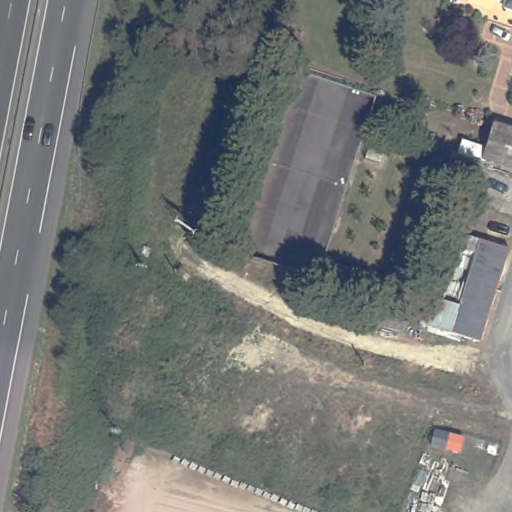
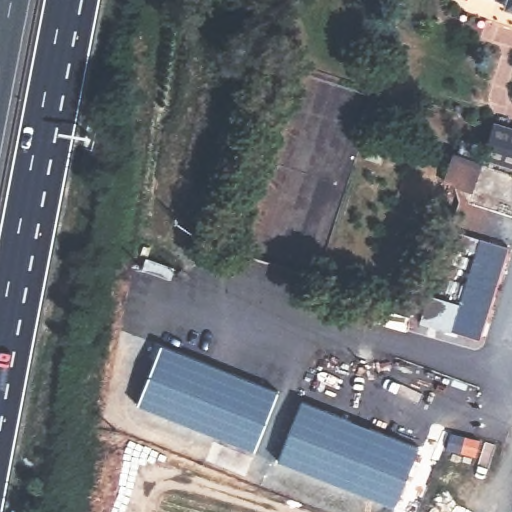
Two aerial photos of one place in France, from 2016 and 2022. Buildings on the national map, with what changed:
unchanged [(503,8),(478,0),(512,0),(512,18),(501,15),(503,8)]
unchanged [(449,181),(458,152),(462,152),(467,137),(492,145),(501,122),(512,126),(512,164),(488,157),(476,190),(457,184),(449,181)]
unchanged [(480,237),(510,246),(481,338),(451,330),(480,237)]
new [(276,391),(252,451),(136,403),(160,345),(276,391)]
new [(418,447),(393,507),(278,460),(301,401),(418,447)]

